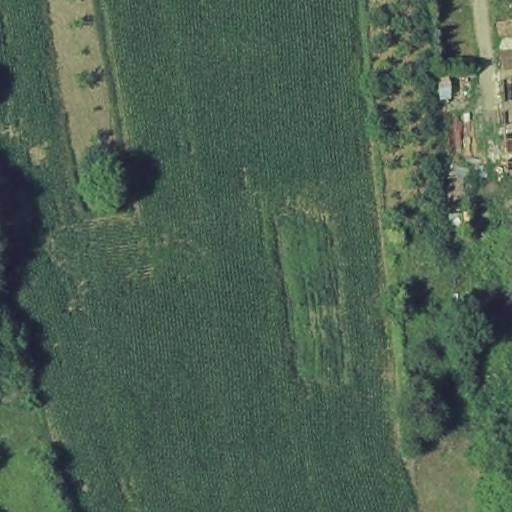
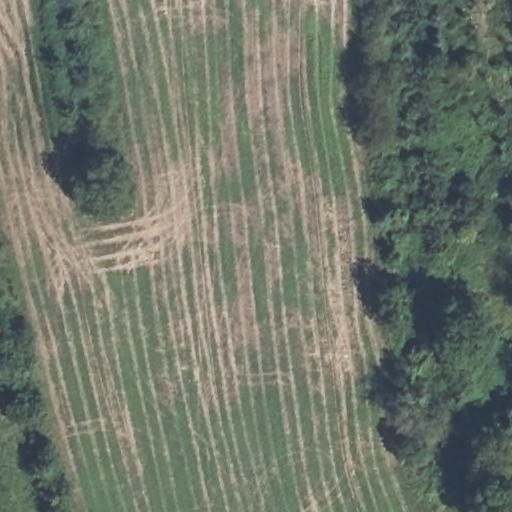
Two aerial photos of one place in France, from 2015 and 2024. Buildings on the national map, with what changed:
unchanged [(500,54),(512,53),(512,127),(503,127),(500,54)]

